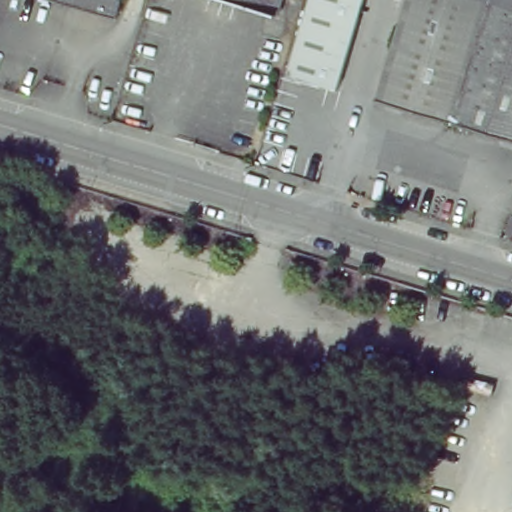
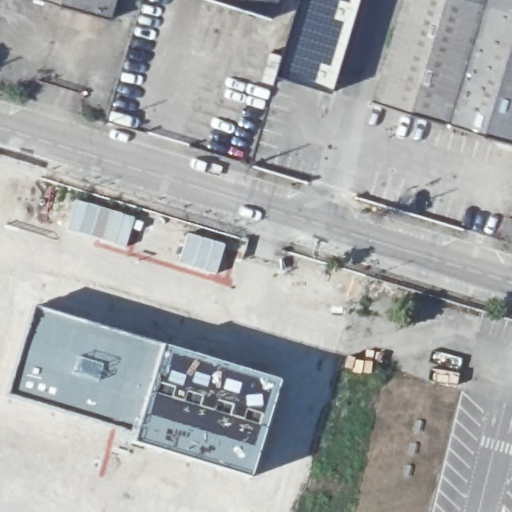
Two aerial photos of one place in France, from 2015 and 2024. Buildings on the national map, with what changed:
unchanged [(49,0),(116,0),(110,18),(49,0)]
unchanged [(220,0),(279,0),(274,16),(220,0)]
unchanged [(284,75),(307,0),(352,0),(326,89),(284,75)]
unchanged [(376,100),(405,0),(512,0),(512,142),(376,100)]
new [(75,199),(136,218),(125,248),(66,229),(75,199)]
unchanged [(504,234),(509,217),(512,218),(512,237),(504,234)]
new [(186,232),(225,244),(216,274),(178,263),(186,232)]
new [(33,306),(83,319),(161,344),(145,399),(131,434),(6,395),(33,306)]
new [(131,434),(145,399),(161,344),(279,381),(249,478),(128,443),(131,434)]

